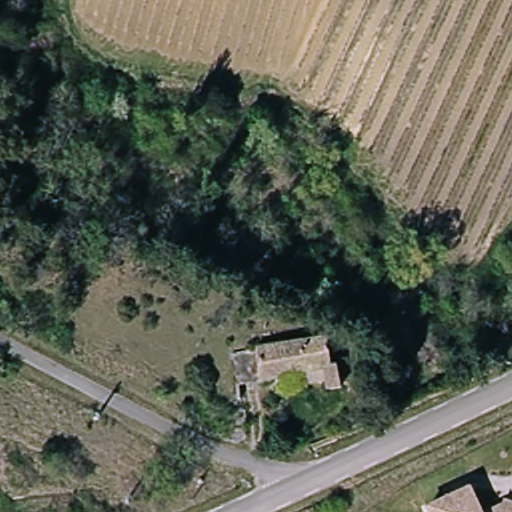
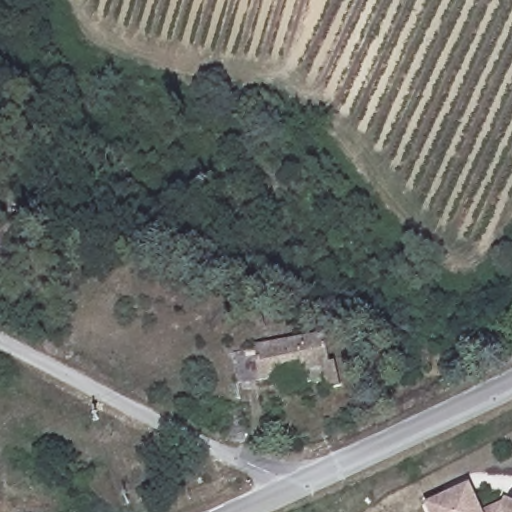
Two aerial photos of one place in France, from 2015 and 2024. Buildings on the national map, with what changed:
unchanged [(337,388),(322,388),(322,372),(257,376),(253,347),(325,342),(327,368),(336,369),(337,388)]
unchanged [(337,404),(326,404),(326,395),(336,395),(337,404)]
unchanged [(430,511),(471,491),(481,512),(431,512),(430,511)]
unchanged [(503,508),(506,502),(512,504),(512,512),(495,512),(503,508)]

